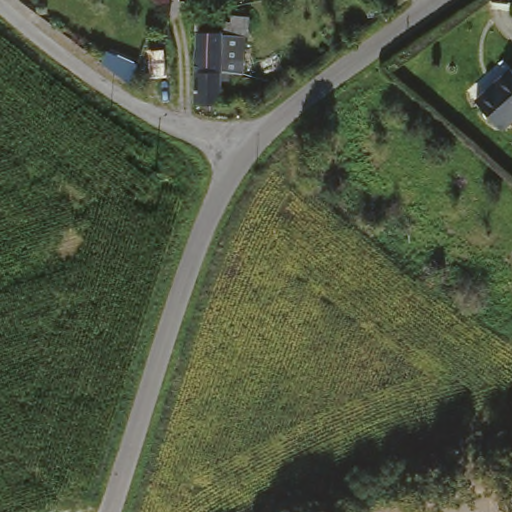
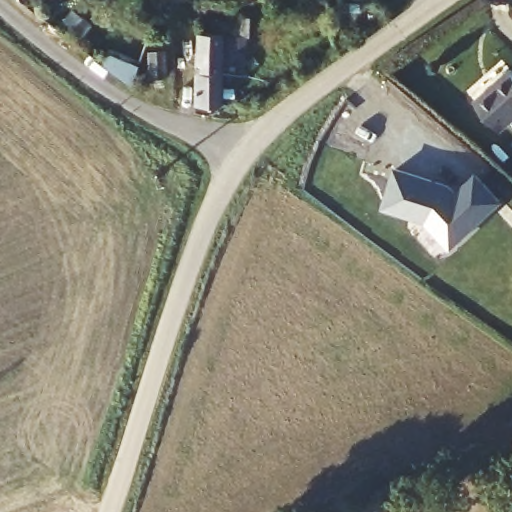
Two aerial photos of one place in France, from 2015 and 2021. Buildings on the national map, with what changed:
unchanged [(220,63),(220,52),(221,38),(227,38),(228,21),(248,21),(248,39),(242,39),(241,79),(219,78),(220,63)]
unchanged [(220,52),(220,63),(219,78),(218,109),(194,107),(199,23),(210,24),(222,25),(221,35),(221,38),(220,52)]
unchanged [(512,124),(504,132),(477,104),(511,73),(512,74),(512,124)]
new [(393,166),(451,184),(457,190),(476,172),(504,201),(452,250),(427,223),(381,209),(393,166)]

